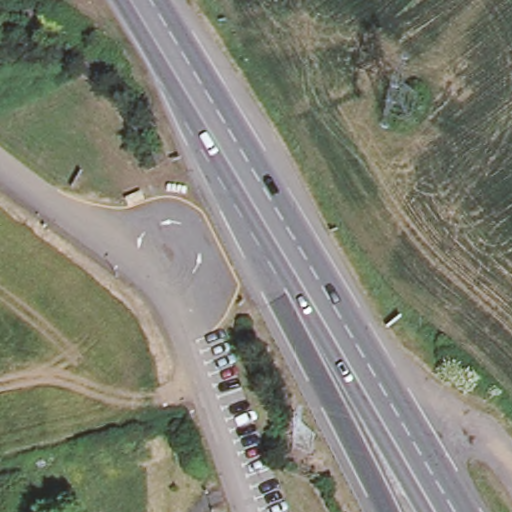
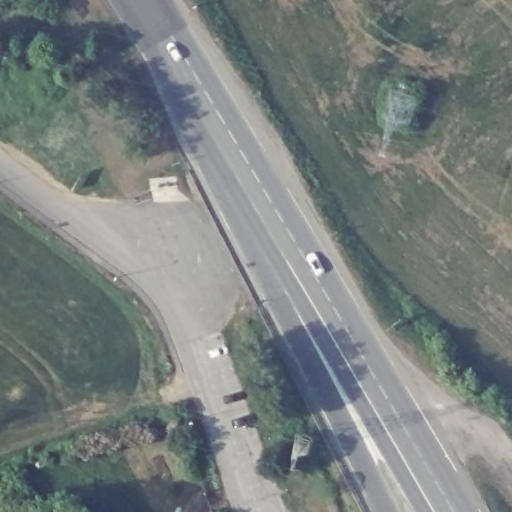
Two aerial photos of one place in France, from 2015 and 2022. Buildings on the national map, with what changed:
[]

